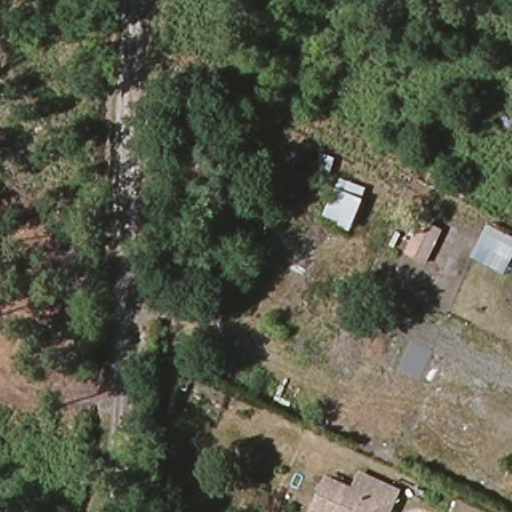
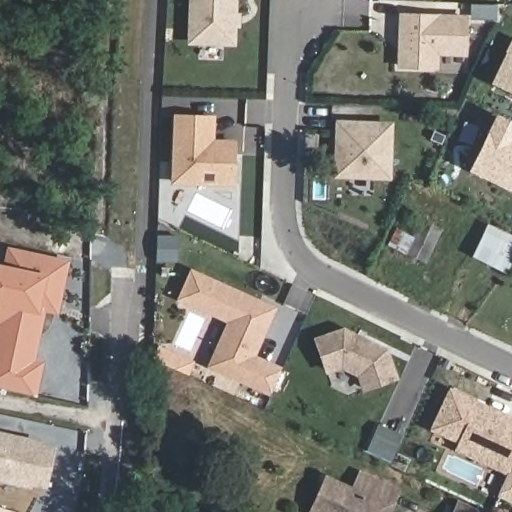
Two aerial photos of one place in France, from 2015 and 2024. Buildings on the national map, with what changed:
new [(194,0),(238,0),(236,43),(193,42),(194,0)]
new [(500,5),(500,19),(475,19),(475,4),(500,5)]
new [(406,14),(470,16),(469,52),(440,50),(440,65),(404,64),(406,14)]
new [(512,42),(512,92),(491,82),(512,42)]
demolished [(510,97),(510,79),(512,79),(512,97),(510,97)]
new [(180,116),(216,117),(215,141),(237,142),(236,182),(178,180),(180,116)]
new [(495,120),(512,128),(512,135),(507,146),(512,148),(512,189),(511,191),(470,172),(495,120)]
new [(343,122),(395,125),(392,176),(341,174),(343,122)]
demolished [(367,189),(350,229),(326,217),(341,181),(367,189)]
demolished [(417,212),(446,227),(423,270),(398,252),(417,212)]
new [(396,230),(412,237),(422,217),(443,227),(426,263),(388,246),(396,230)]
demolished [(475,240),(462,266),(437,256),(450,229),(475,240)]
new [(13,271),(0,269),(0,263),(4,263),(6,251),(16,252),(14,265),(13,271)]
new [(16,252),(72,262),(65,305),(46,302),(42,323),(10,317),(14,296),(0,293),(0,269),(13,271),(16,252)]
new [(275,392),(245,378),(214,364),(234,320),(184,297),(196,271),(277,308),(256,353),(285,367),(275,392)]
new [(12,307),(10,317),(5,352),(0,350),(0,293),(14,296),(12,307)]
new [(10,317),(42,323),(36,360),(5,352),(10,317)]
new [(363,392),(358,376),(342,368),(326,374),(313,338),(344,327),(387,349),(398,378),(363,392)]
new [(194,373),(156,357),(145,352),(150,342),(161,346),(199,362),(194,373)]
new [(36,360),(40,361),(34,390),(0,382),(0,350),(5,352),(36,360)]
new [(453,451),(456,443),(429,430),(449,386),(512,416),(512,503),(496,496),(505,475),(453,451)]
demolished [(437,399),(483,420),(465,458),(420,438),(437,399)]
demolished [(342,411),(353,415),(358,404),(390,420),(385,430),(400,437),(391,453),(333,427),(342,411)]
new [(378,424),(403,435),(391,462),(366,452),(370,443),(378,424)]
new [(43,445),(58,448),(50,485),(35,482),(35,484),(0,477),(0,432),(44,442),(43,445)]
unchanged [(351,496),(358,481),(395,497),(390,511),(389,512),(313,512),(326,486),(351,496)]
unchanged [(497,512),(452,512),(461,494),(497,512)]

